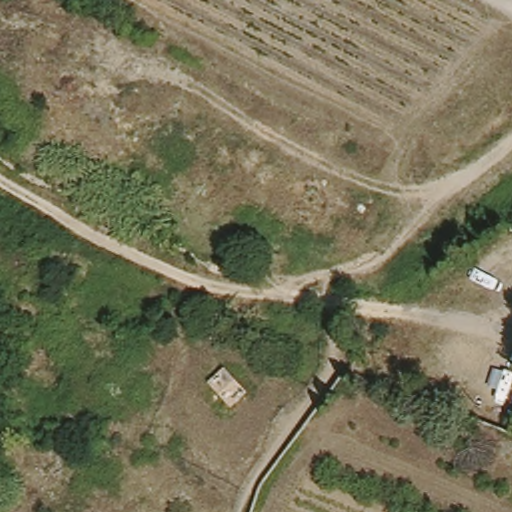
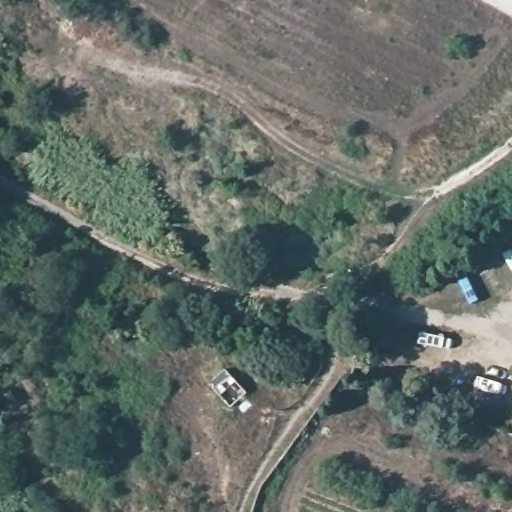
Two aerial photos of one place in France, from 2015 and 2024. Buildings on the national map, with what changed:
unchanged [(205,387),(224,373),(243,398),(227,412),(205,387)]

